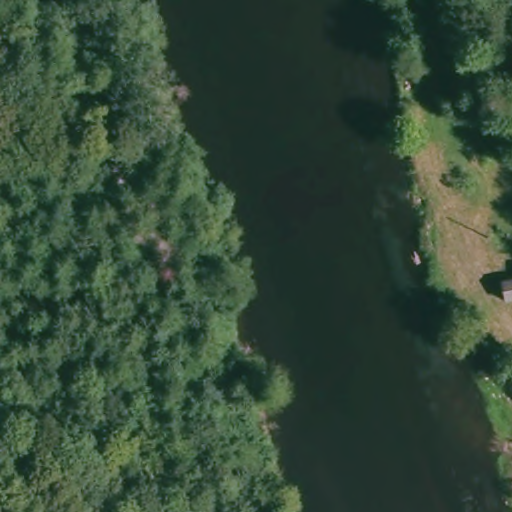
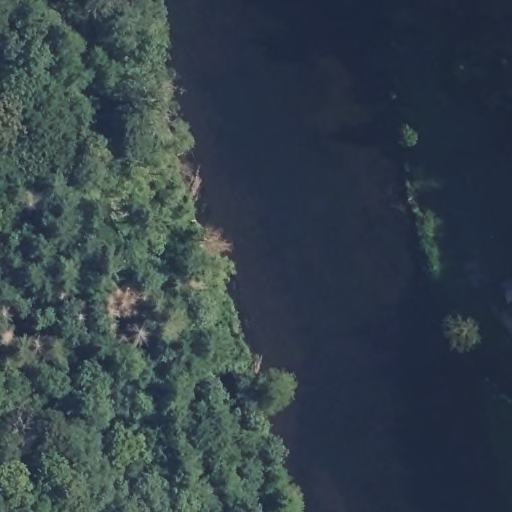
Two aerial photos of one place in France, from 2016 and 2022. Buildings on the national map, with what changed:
unchanged [(501,294),(495,275),(512,270),(512,290),(501,294)]

